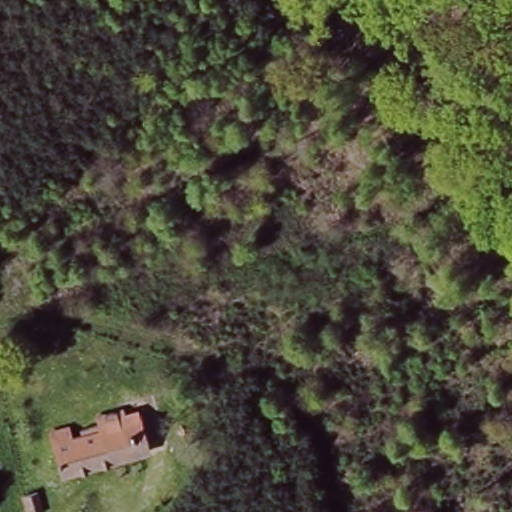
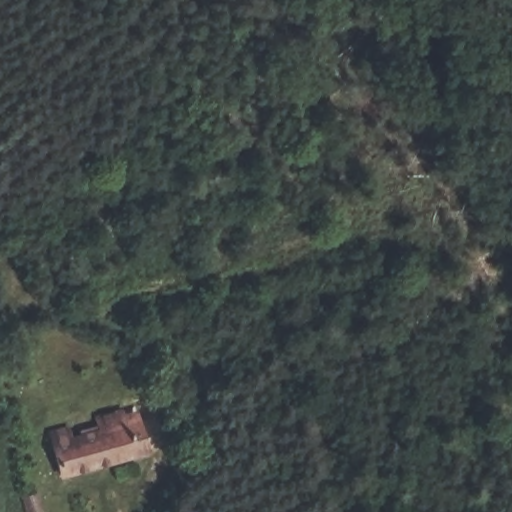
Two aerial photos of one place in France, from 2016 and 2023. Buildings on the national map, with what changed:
unchanged [(140,422),(152,450),(63,479),(54,452),(122,429),(140,422)]
unchanged [(27,499),(9,506),(2,487),(20,481),(27,499)]

